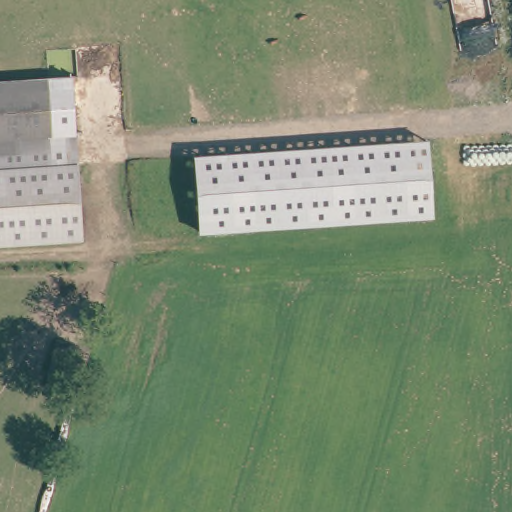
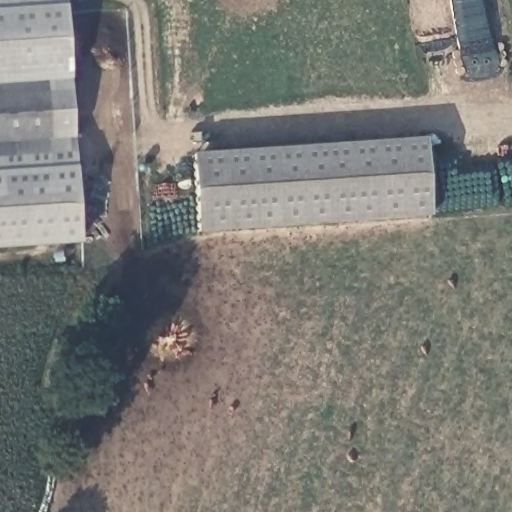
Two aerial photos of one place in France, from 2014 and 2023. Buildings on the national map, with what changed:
new [(41,76),(40,70),(0,76),(0,0),(66,0),(71,74),(41,76)]
unchanged [(40,70),(48,128),(0,134),(0,76),(40,70)]
unchanged [(72,74),(82,240),(0,245),(0,134),(48,128),(41,76),(72,74)]
unchanged [(431,217),(197,232),(191,155),(426,139),(431,217)]

